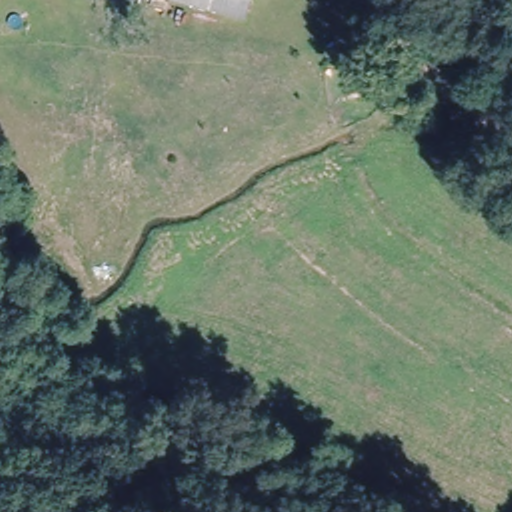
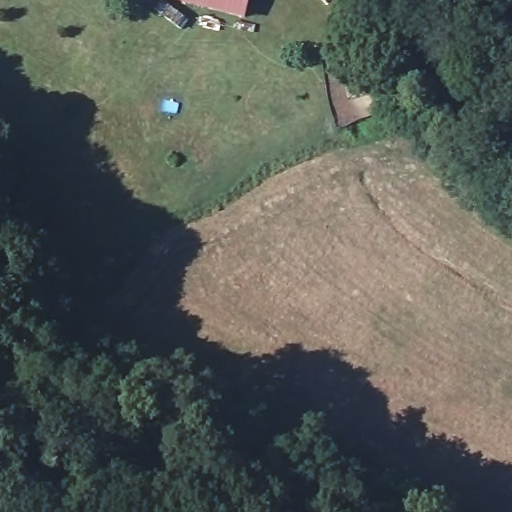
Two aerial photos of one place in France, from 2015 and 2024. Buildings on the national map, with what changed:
unchanged [(247,0),(240,24),(162,0),(247,0)]

